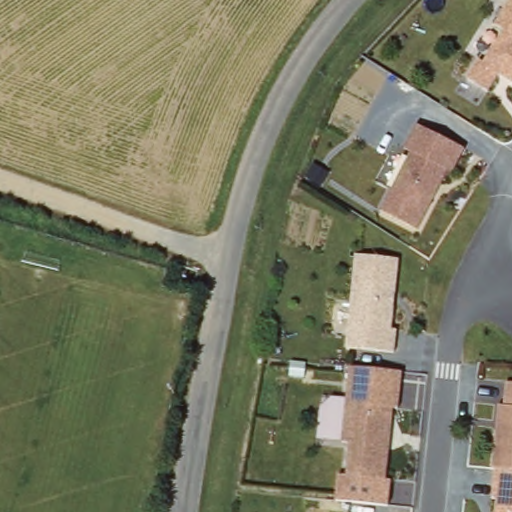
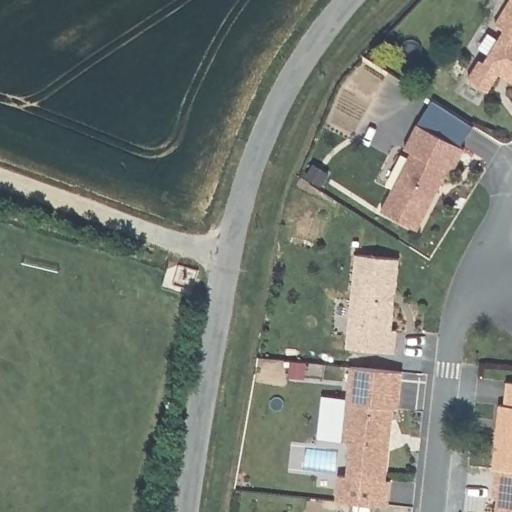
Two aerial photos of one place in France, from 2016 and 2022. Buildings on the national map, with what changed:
unchanged [(487,90),(467,78),(479,59),(483,62),(503,29),(494,24),(509,0),(512,0),(512,81),(498,72),(487,90)]
unchanged [(465,152),(452,176),(448,174),(417,232),(381,214),(411,155),(405,152),(418,127),(465,152)]
unchanged [(399,261),(391,331),(396,332),(393,354),(351,350),(361,257),(399,261)]
unchanged [(401,373),(397,410),(392,410),(384,481),(345,477),(349,445),(341,444),(349,368),(401,373)]
unchanged [(512,471),(498,470),(495,469),(502,406),(507,406),(509,382),(512,383),(512,471)]
unchanged [(512,512),(498,512),(499,499),(494,498),(498,470),(512,471),(512,512)]

